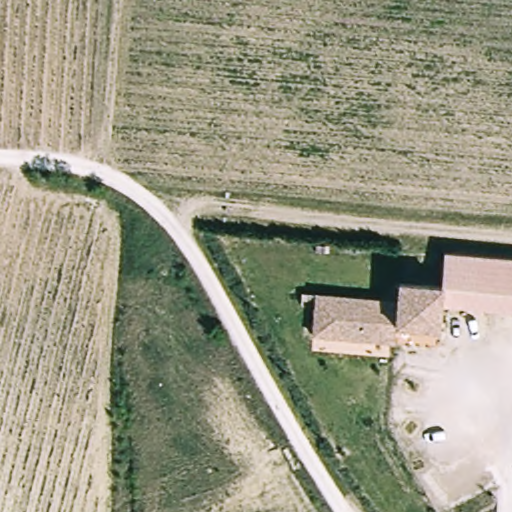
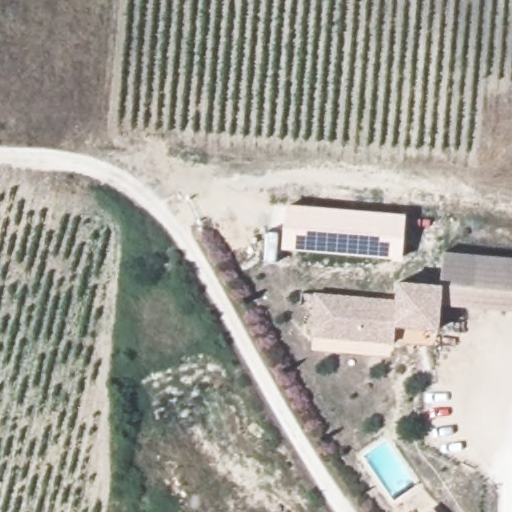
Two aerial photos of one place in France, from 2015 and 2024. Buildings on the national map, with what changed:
new [(406,214),(403,258),(282,249),(285,204),(406,214)]
unchanged [(446,255),(512,262),(512,315),(442,309),(446,255)]
unchanged [(396,299),(398,280),(444,284),(440,330),(395,326),(395,341),(312,336),(316,292),(396,299)]

